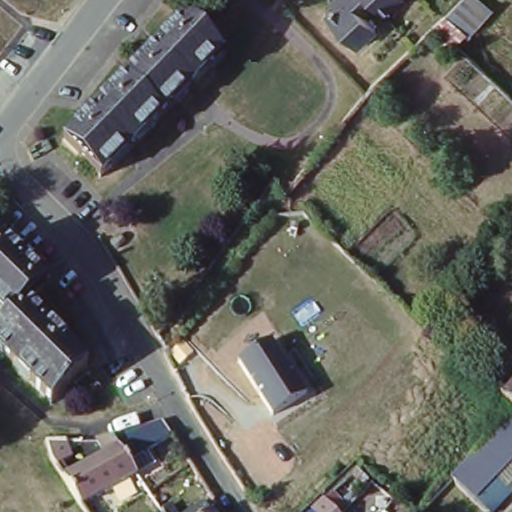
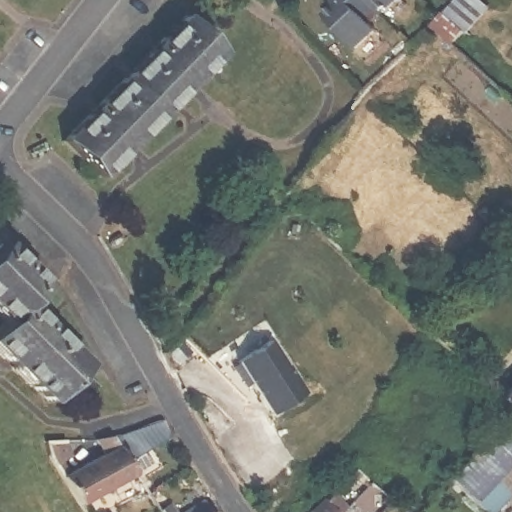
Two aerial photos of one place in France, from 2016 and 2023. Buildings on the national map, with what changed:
unchanged [(402,0),(402,1),(382,19),(375,11),(365,21),(376,32),(356,52),(326,21),(335,12),(330,7),(335,2),(337,0),(402,0)]
unchanged [(480,0),(489,8),(466,31),(454,42),(435,24),(447,12),(458,0),(480,0)]
unchanged [(101,179),(68,149),(188,21),(222,51),(101,179)]
unchanged [(43,281),(24,302),(88,363),(58,395),(0,341),(0,327),(12,315),(0,304),(0,248),(4,244),(43,281)]
unchanged [(435,320),(458,343),(467,352),(458,361),(426,329),(435,320)]
unchanged [(238,362),(274,338),(308,394),(272,416),(238,362)]
unchanged [(505,420),(470,387),(476,381),(497,402),(512,387),(512,426),(505,420)]
unchanged [(471,512),(442,486),(505,420),(512,426),(512,467),(471,512)]
unchanged [(104,460),(94,446),(110,443),(134,437),(160,427),(170,443),(121,459),(135,480),(80,512),(79,510),(61,482),(104,460)]
unchanged [(321,507),(325,512),(316,512),(321,507)]

